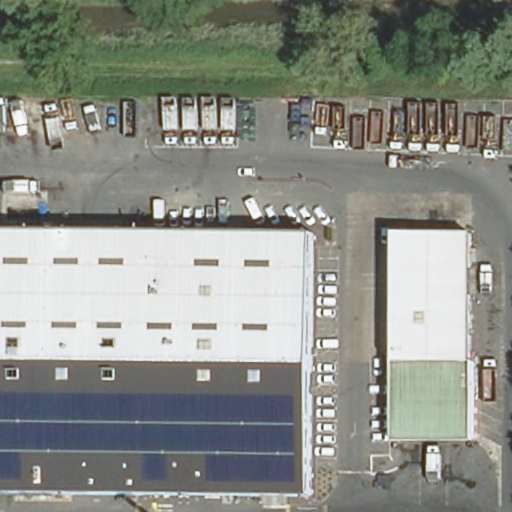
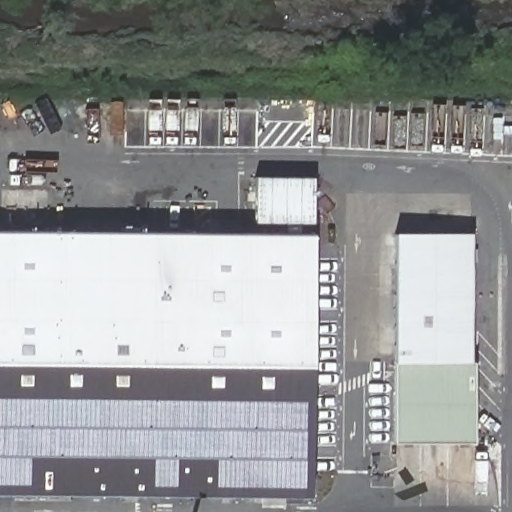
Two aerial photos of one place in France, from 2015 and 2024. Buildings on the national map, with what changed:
new [(254,222),(255,176),(313,177),(313,222),(254,222)]
unchanged [(468,357),(472,357),(471,438),(391,437),(391,357),(392,227),(468,228),(468,357)]
unchanged [(0,234),(309,238),(306,488),(0,485),(0,234)]

